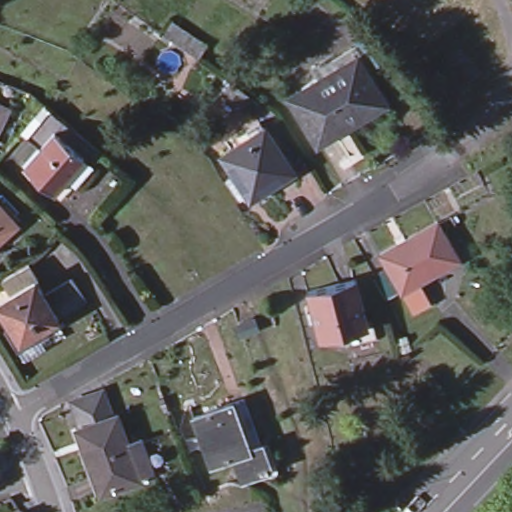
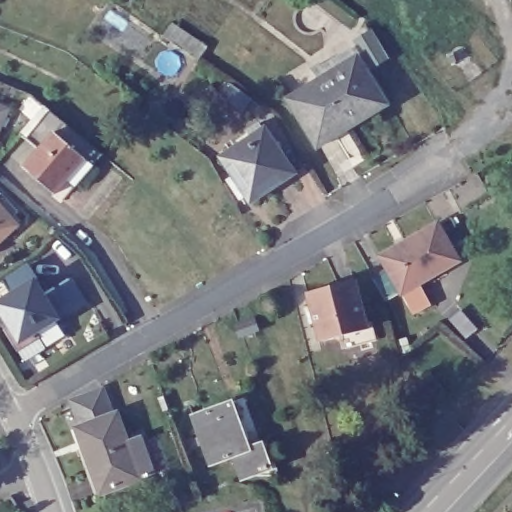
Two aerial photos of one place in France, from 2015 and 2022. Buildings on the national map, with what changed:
unchanged [(354,59),(367,79),(362,83),(377,109),(315,148),(286,100),(354,59)]
unchanged [(18,139),(42,112),(61,128),(100,161),(72,191),(64,184),(51,199),(22,172),(37,155),(18,139)]
unchanged [(5,115),(0,124),(0,113),(5,115)]
unchanged [(247,203),(219,158),(232,150),(262,130),(292,174),(259,195),(247,203)]
unchanged [(19,225),(0,242),(0,204),(19,225)]
unchanged [(419,284),(428,309),(407,318),(377,254),(435,224),(459,267),(419,284)]
unchanged [(0,324),(0,311),(9,306),(0,291),(25,277),(35,291),(32,293),(40,308),(69,291),(83,313),(55,330),(18,354),(0,324)]
unchanged [(305,293),(354,281),(366,329),(317,341),(305,293)]
unchanged [(79,428),(70,401),(100,390),(110,416),(114,415),(138,480),(99,495),(75,429),(79,428)]
unchanged [(260,473),(247,478),(238,455),(227,459),(214,463),(197,417),(209,413),(235,404),(247,399),(264,446),(272,469),(260,473)]

